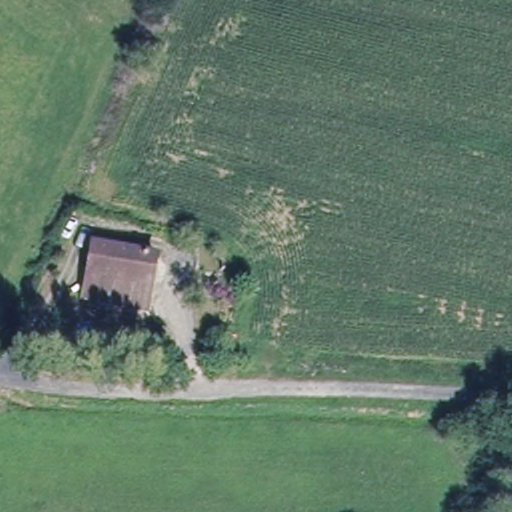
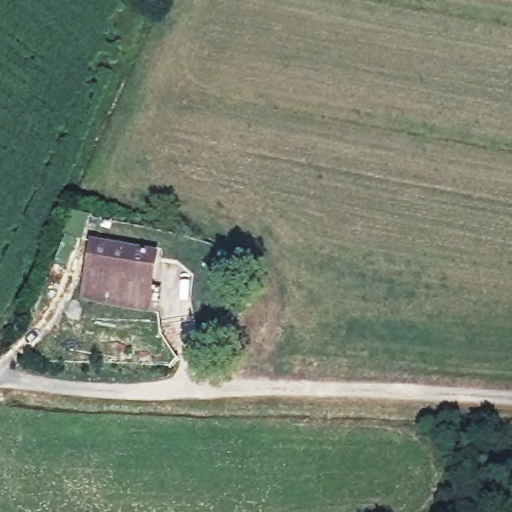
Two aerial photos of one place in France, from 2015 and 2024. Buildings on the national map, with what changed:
unchanged [(79,290),(91,242),(164,261),(152,307),(79,290)]

